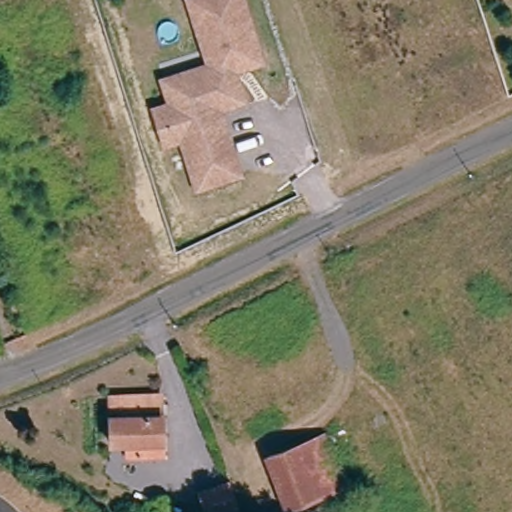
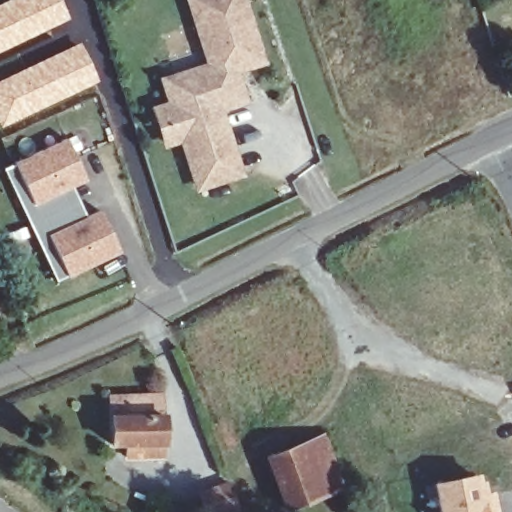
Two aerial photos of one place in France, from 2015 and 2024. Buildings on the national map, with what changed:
new [(71,19),(0,52),(0,2),(4,0),(62,0),(71,19)]
unchanged [(193,187),(187,171),(177,139),(161,145),(150,111),(166,106),(158,82),(207,66),(197,36),(185,0),(237,0),(257,61),(237,67),(232,77),(240,100),(215,109),(229,157),(234,174),(193,187)]
new [(100,81),(0,128),(0,78),(81,40),(100,81)]
new [(86,180),(72,186),(86,215),(99,209),(120,252),(55,280),(1,166),(66,136),(86,180)]
unchanged [(162,398),(166,459),(129,458),(129,445),(110,445),(110,401),(162,398)]
unchanged [(325,435),(345,486),(288,507),(267,457),(325,435)]
new [(495,512),(439,512),(434,485),(476,477),(479,499),(487,497),(492,497),(495,512)]
unchanged [(240,505),(216,512),(211,512),(204,490),(232,480),(240,505)]
new [(485,486),(487,498),(479,499),(477,487),(485,486)]

